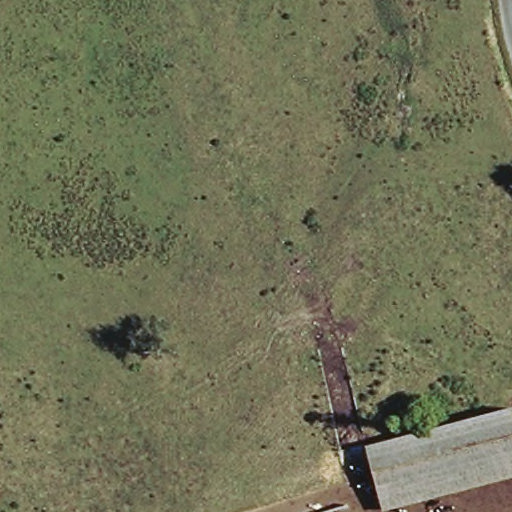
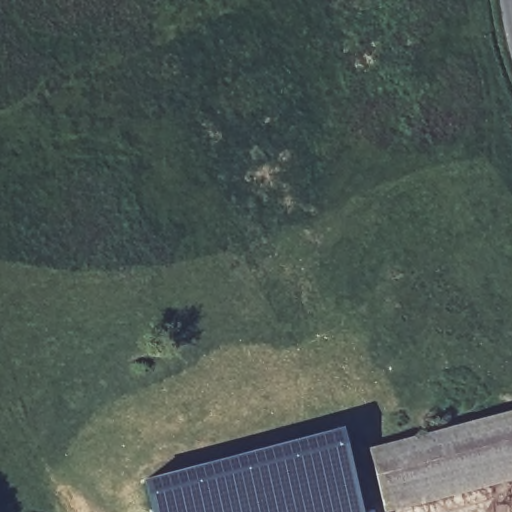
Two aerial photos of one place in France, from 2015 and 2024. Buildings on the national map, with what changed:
unchanged [(406,512),(384,512),(369,455),(512,418),(512,485),(406,512)]
new [(340,426),(363,512),(150,512),(142,479),(340,426)]

